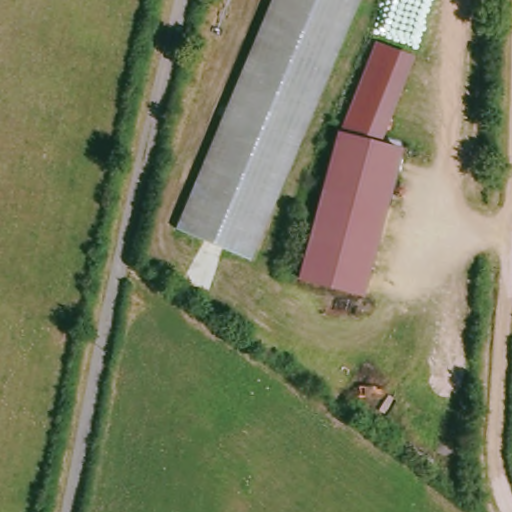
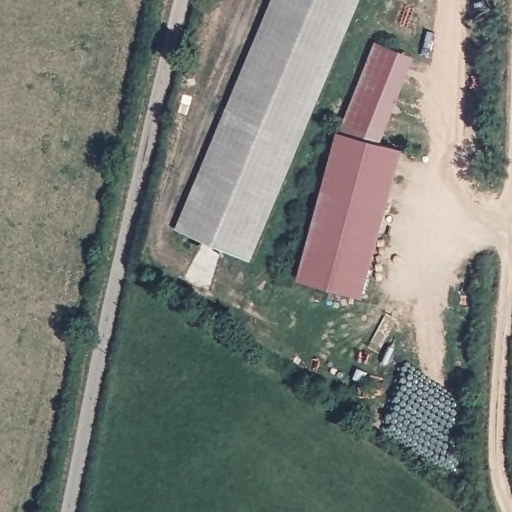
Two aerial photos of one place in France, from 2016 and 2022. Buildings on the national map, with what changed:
unchanged [(180,228),(269,0),(356,0),(256,257),(180,228)]
unchanged [(417,56),(386,139),(338,127),(375,38),(417,56)]
unchanged [(337,127),(386,139),(398,142),(385,202),(323,189),(337,127)]
unchanged [(366,290),(305,274),(323,189),(385,202),(366,290)]

